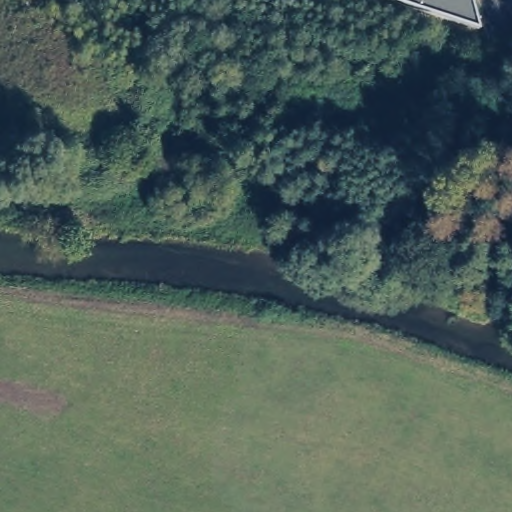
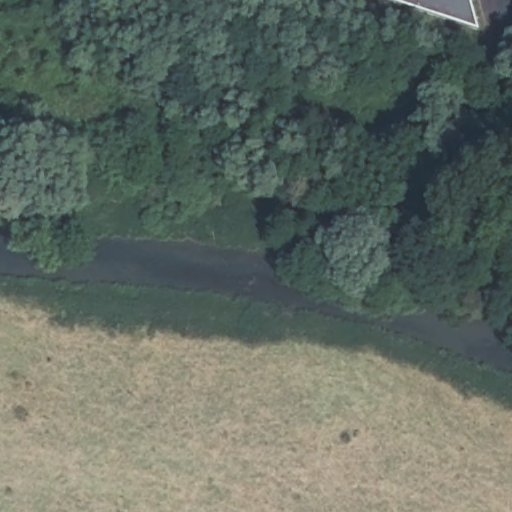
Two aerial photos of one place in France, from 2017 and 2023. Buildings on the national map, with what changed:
unchanged [(478,29),(390,0),(471,0),(478,29)]

